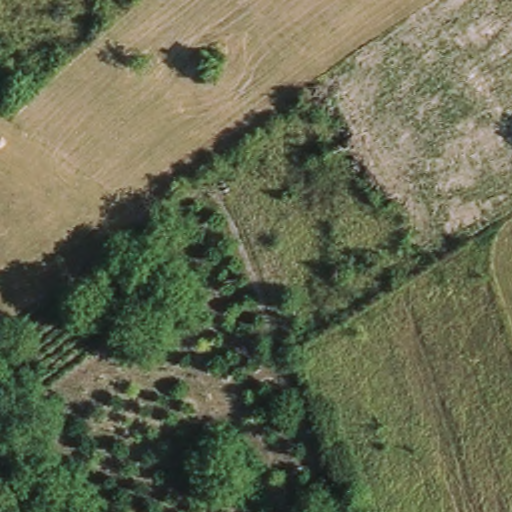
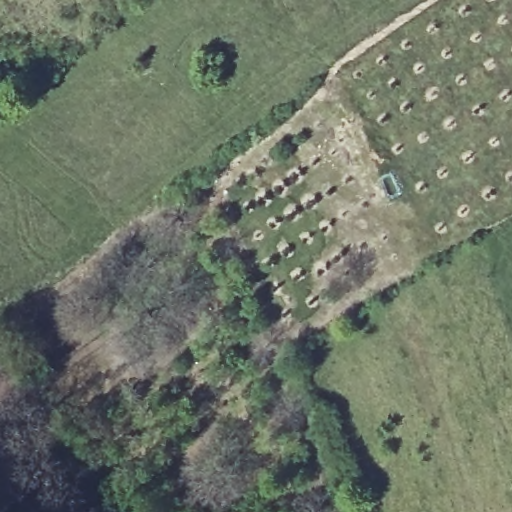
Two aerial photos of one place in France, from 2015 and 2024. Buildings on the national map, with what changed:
[]

